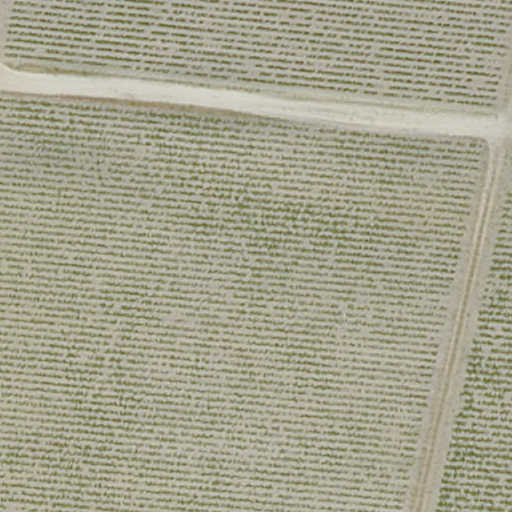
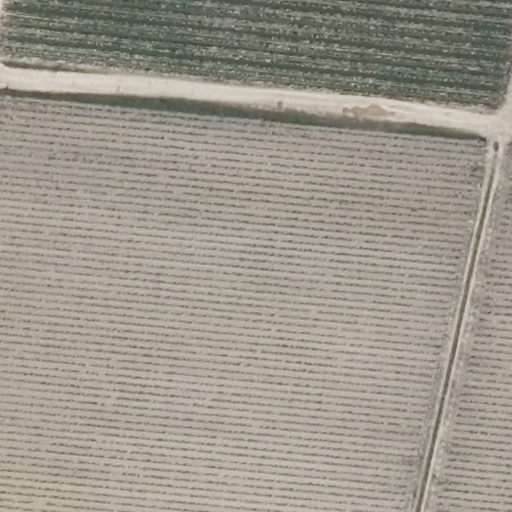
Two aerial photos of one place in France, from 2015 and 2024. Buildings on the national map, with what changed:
[]

